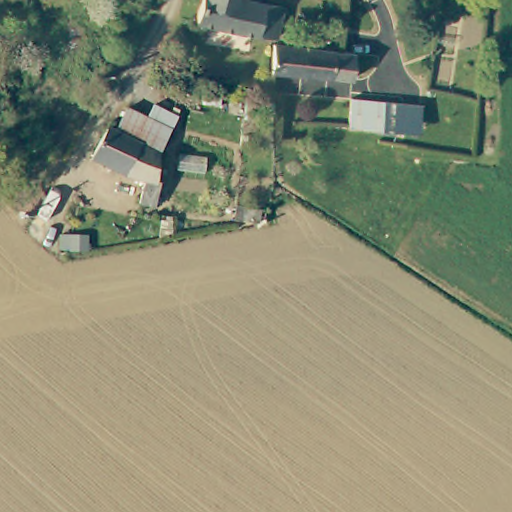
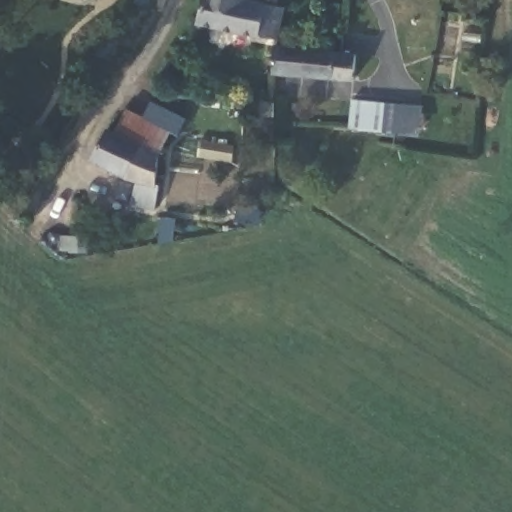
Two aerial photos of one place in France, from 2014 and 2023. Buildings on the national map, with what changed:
unchanged [(284,2),(276,35),(196,18),(202,0),(272,0),(284,2)]
unchanged [(340,48),(356,50),(354,75),(271,68),(275,41),(340,48)]
unchanged [(393,99),(391,126),(340,122),(342,95),(393,99)]
unchanged [(136,143),(142,131),(122,122),(129,110),(149,120),(155,107),(176,117),(160,154),(136,143)]
unchanged [(117,133),(122,122),(142,131),(136,143),(160,154),(156,182),(160,183),(157,208),(141,204),(145,182),(92,159),(109,129),(117,133)]
unchanged [(258,210),(257,224),(236,221),(237,207),(258,210)]

